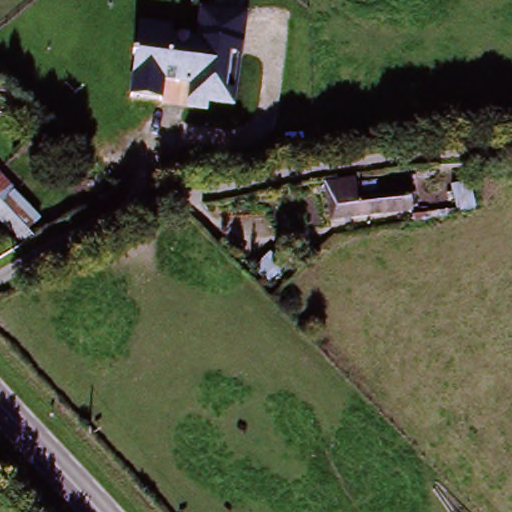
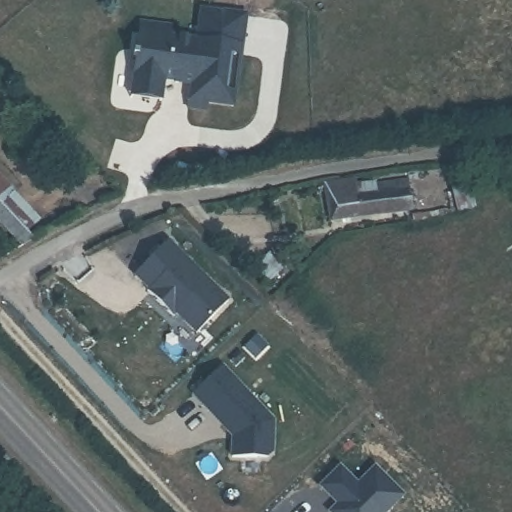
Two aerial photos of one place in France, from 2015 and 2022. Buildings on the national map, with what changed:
unchanged [(172,25),(170,36),(194,39),(197,8),(247,13),(234,109),(208,106),(208,111),(186,110),(188,87),(162,85),(160,104),(130,100),(136,42),(139,21),(172,25)]
unchanged [(45,237),(0,188),(0,178),(48,235),(45,237)]
unchanged [(370,189),(405,182),(410,210),(332,224),(328,202),(323,187),(360,182),(361,196),(371,195),(370,189)]
unchanged [(28,246),(0,217),(0,188),(45,237),(28,246)]
new [(230,301),(196,336),(175,314),(172,317),(133,275),(167,240),(230,301)]
new [(275,420),(273,453),(267,460),(230,458),(230,436),(191,395),(223,364),(275,420)]

